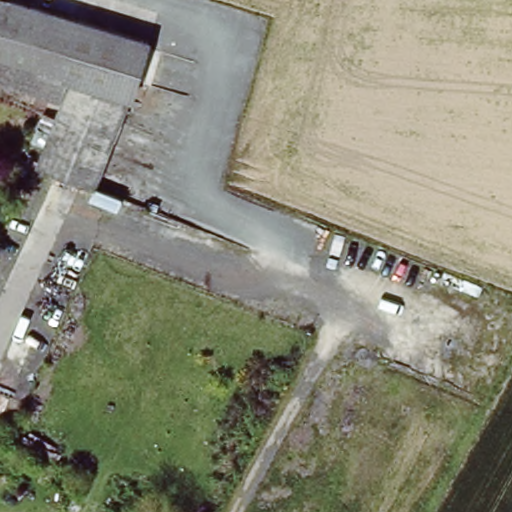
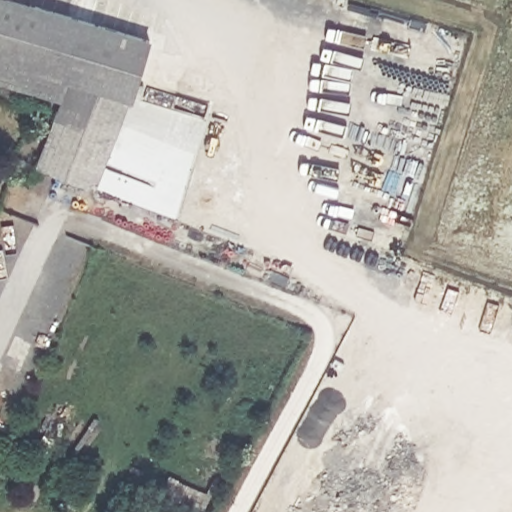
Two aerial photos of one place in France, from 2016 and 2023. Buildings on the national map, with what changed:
unchanged [(44,172),(45,169),(62,123),(63,119),(67,106),(11,83),(0,80),(0,0),(19,0),(112,31),(125,35),(147,42),(130,96),(114,144),(109,159),(112,160),(100,193),(76,184),(44,172)]

